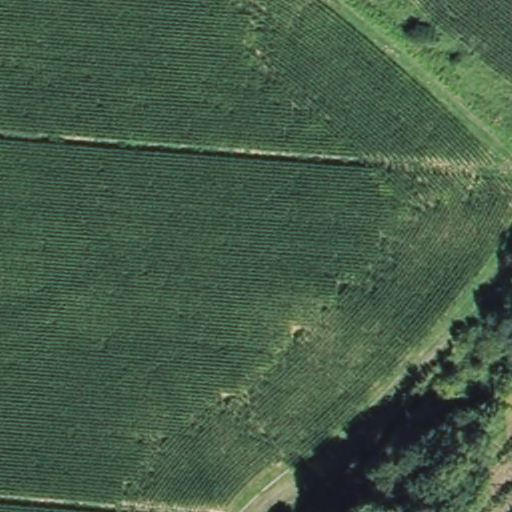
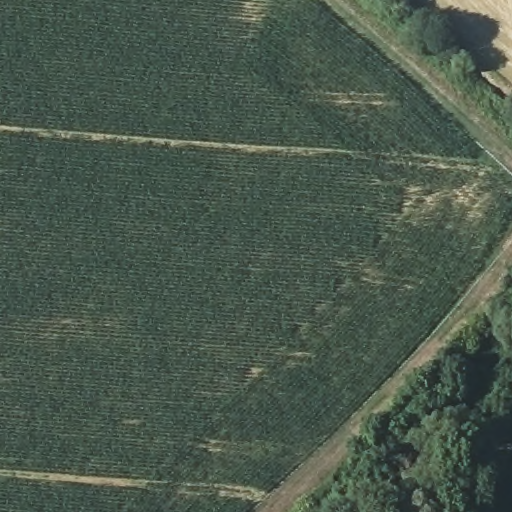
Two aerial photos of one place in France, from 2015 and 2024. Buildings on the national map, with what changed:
[]

